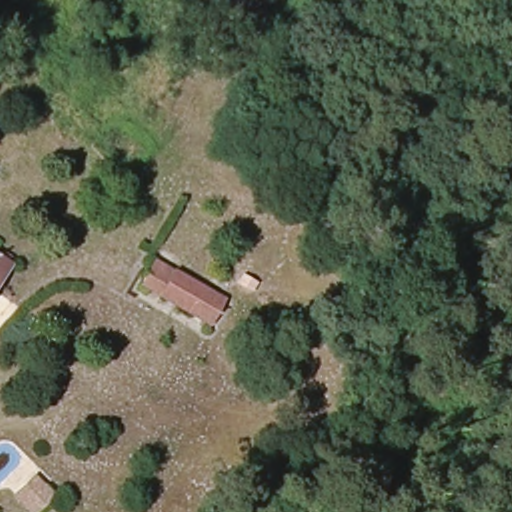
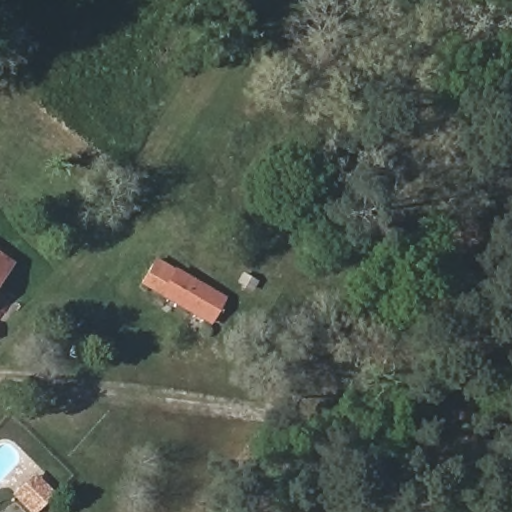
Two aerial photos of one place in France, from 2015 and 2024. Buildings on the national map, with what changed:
unchanged [(0,293),(0,249),(19,260),(0,293)]
unchanged [(212,324),(150,285),(167,260),(231,301),(212,324)]
unchanged [(62,492),(42,512),(34,512),(17,497),(37,472),(62,492)]

